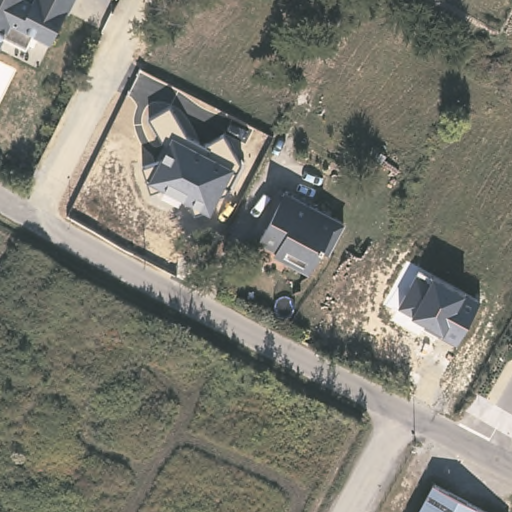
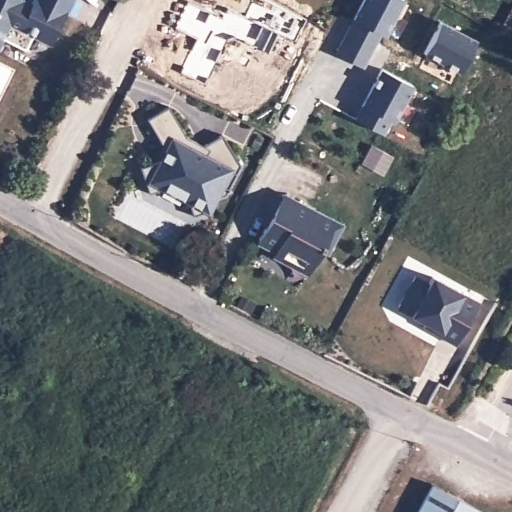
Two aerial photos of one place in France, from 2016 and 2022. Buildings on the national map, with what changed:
unchanged [(33,2),(34,0),(72,0),(54,39),(36,30),(29,46),(5,34),(0,44),(0,0),(29,0),(33,2)]
new [(353,18),(363,0),(404,0),(385,35),(353,18)]
new [(442,21),(477,39),(461,72),(424,52),(442,21)]
new [(413,87),(394,121),(391,117),(383,132),(356,117),(362,103),(381,68),(413,87)]
unchanged [(170,105),(187,135),(205,145),(224,133),(241,165),(229,189),(218,195),(210,213),(205,211),(195,213),(190,202),(183,199),(178,209),(159,200),(165,189),(161,189),(151,192),(142,166),(160,160),(168,147),(149,118),(170,105)]
unchanged [(341,225),(326,254),(320,251),(310,268),(295,261),(288,263),(277,257),(273,250),(255,241),(264,224),(272,210),(281,193),(341,225)]
unchanged [(464,290),(479,299),(457,344),(424,327),(427,322),(412,313),(400,306),(416,275),(430,280),(432,275),(464,290)]
unchanged [(416,512),(432,484),(484,512),(416,512)]

